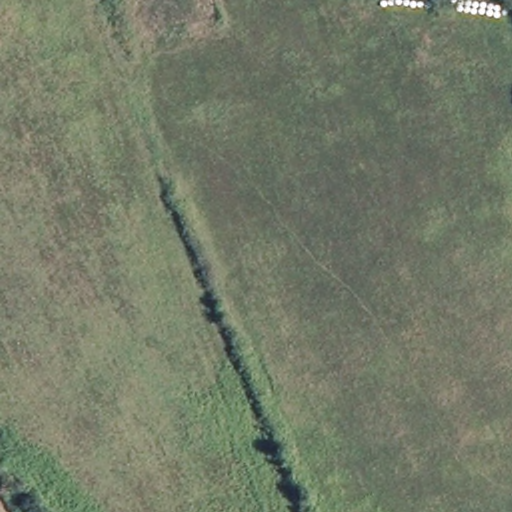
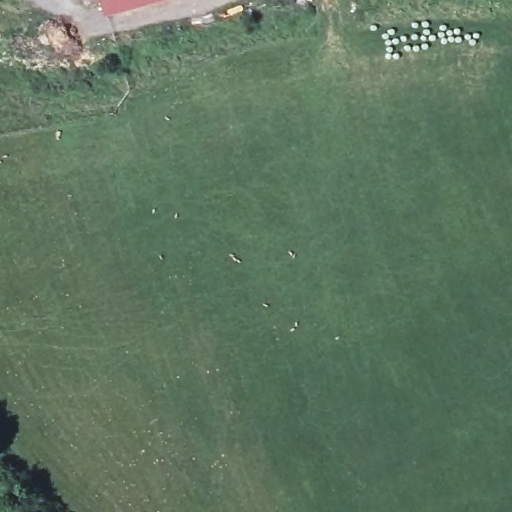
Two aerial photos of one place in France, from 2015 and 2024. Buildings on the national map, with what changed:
new [(100,0),(163,0),(105,16),(100,0)]

